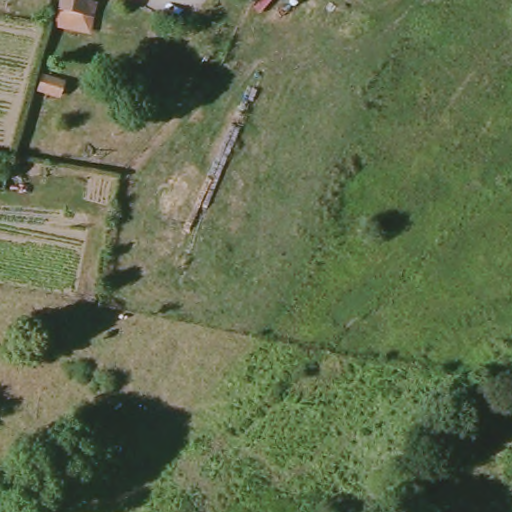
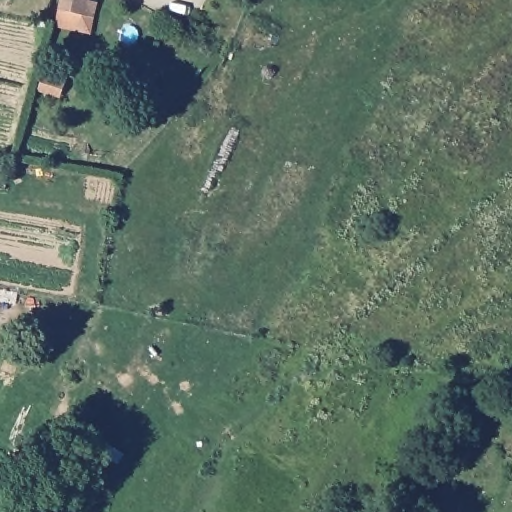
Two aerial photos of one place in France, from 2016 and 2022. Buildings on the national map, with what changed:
unchanged [(69,7),(55,4),(56,0),(91,0),(90,6),(102,9),(96,35),(65,27),(69,7)]

